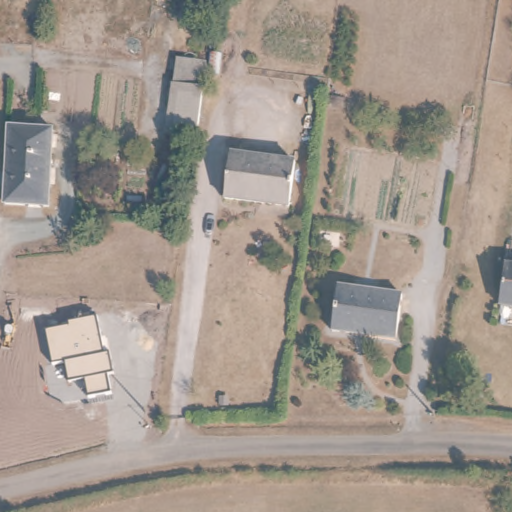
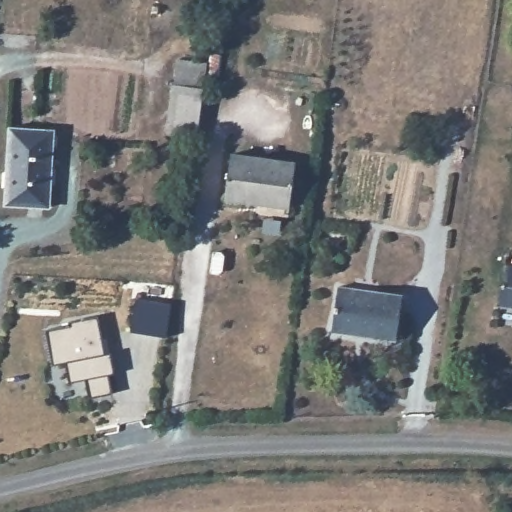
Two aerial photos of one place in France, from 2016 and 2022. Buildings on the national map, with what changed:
unchanged [(203,77),(196,126),(166,122),(173,73),(203,77)]
unchanged [(52,129),(50,207),(6,205),(9,128),(52,129)]
unchanged [(295,161),(289,204),(225,196),(230,153),(295,161)]
unchanged [(512,259),(512,301),(501,299),(508,258),(512,259)]
unchanged [(329,335),(335,289),(367,293),(361,339),(329,335)]
unchanged [(402,298),(395,344),(361,339),(367,293),(402,298)]
new [(138,298),(173,304),(168,337),(130,331),(138,298)]
unchanged [(83,379),(70,381),(65,362),(53,364),(47,331),(70,325),(69,321),(97,318),(104,353),(108,351),(112,373),(106,374),(110,394),(89,398),(83,379)]

